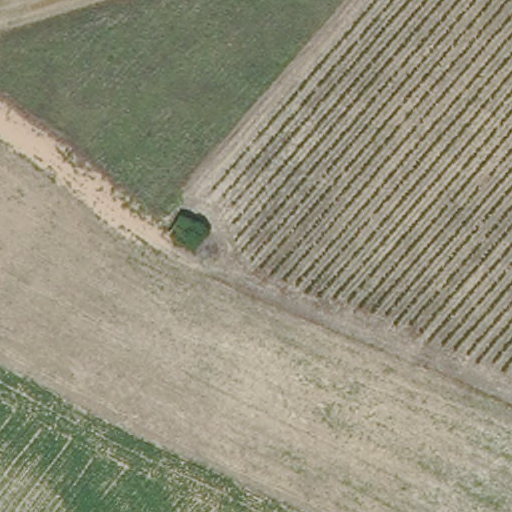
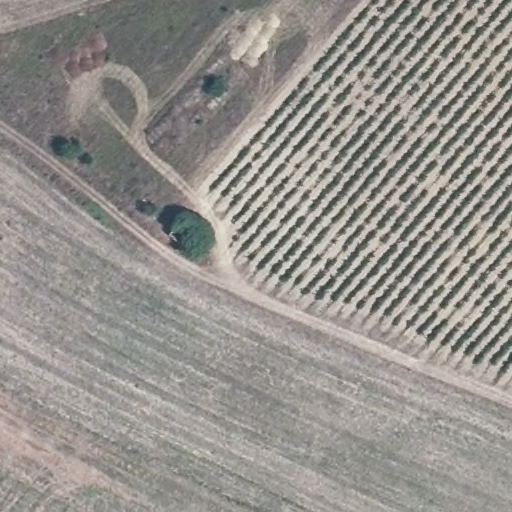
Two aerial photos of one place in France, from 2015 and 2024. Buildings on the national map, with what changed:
unchanged [(170,233),(182,217),(207,236),(196,252),(170,233)]

